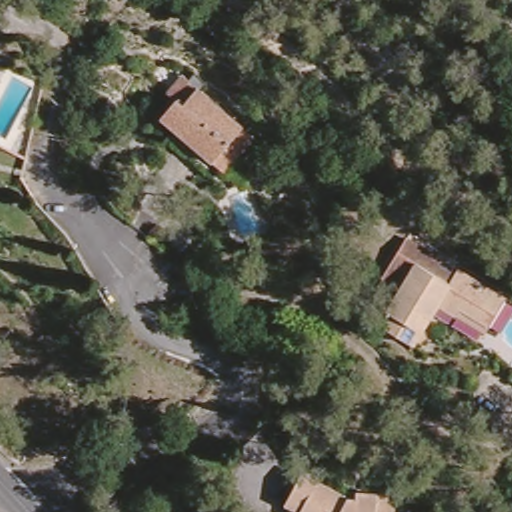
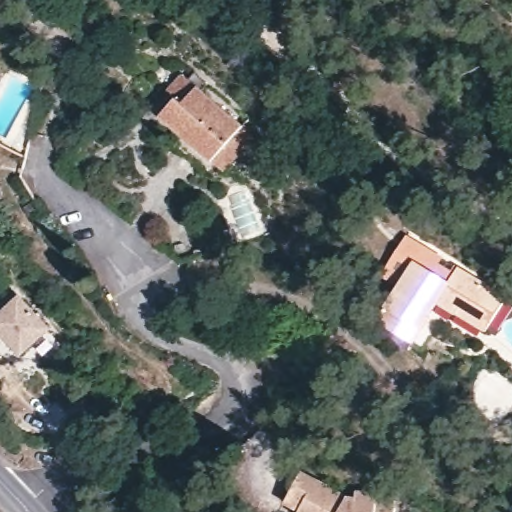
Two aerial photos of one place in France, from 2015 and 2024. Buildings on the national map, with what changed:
unchanged [(219,163),(212,171),(165,132),(172,124),(154,108),(168,90),(159,81),(174,64),(233,115),(248,128),(219,163)]
unchanged [(459,314),(441,304),(416,344),(383,323),(419,263),(452,282),(460,269),(508,298),(492,325),(488,331),(459,314)]
new [(50,329),(22,357),(0,335),(0,313),(18,296),(50,329)]
unchanged [(292,501),(278,492),(293,464),(338,487),(350,489),(350,483),(373,486),(390,487),(389,499),(387,512),(301,512),(290,506),(292,501)]

